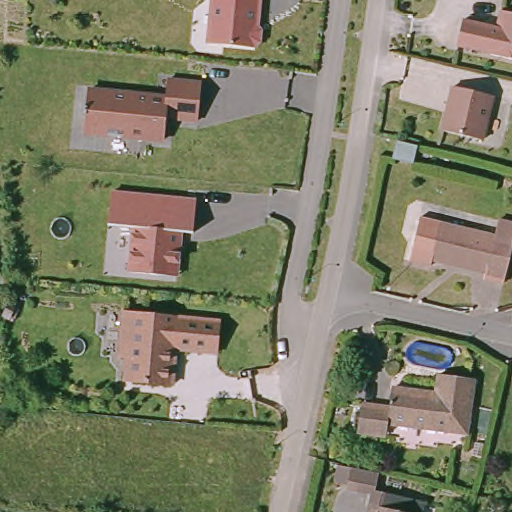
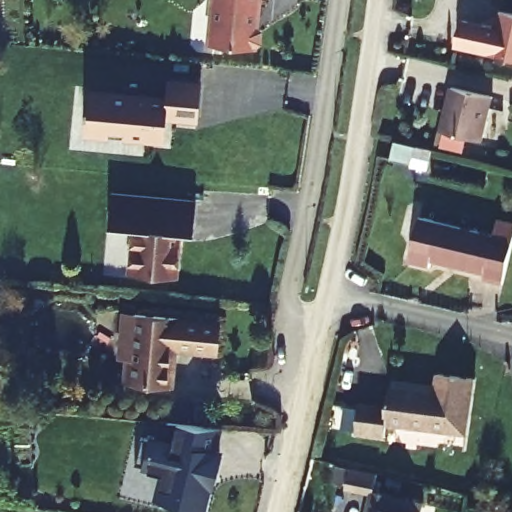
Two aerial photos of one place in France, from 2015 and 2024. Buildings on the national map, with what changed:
unchanged [(258,11),(257,10),(255,24),(257,24),(257,26),(260,31),(260,42),(255,46),(255,49),(208,44),(212,0),(259,0),(258,11)]
unchanged [(463,18),(500,26),(503,9),(512,11),(512,58),(490,53),(491,51),(457,44),(463,18)]
unchanged [(203,84),(200,121),(168,119),(166,141),(87,134),(91,93),(168,100),(170,81),(203,84)]
unchanged [(490,92),(480,136),(439,127),(443,109),(447,110),(449,100),(446,99),(450,83),(490,92)]
unchanged [(393,158),(397,140),(417,145),(413,162),(393,158)]
unchanged [(195,233),(180,231),(179,240),(182,240),(179,275),(162,273),(161,278),(131,275),(135,230),(110,228),(113,194),(198,202),(195,233)]
unchanged [(482,281),(485,273),(485,268),(432,255),(430,260),(411,255),(421,213),(494,230),(497,214),(512,217),(512,243),(505,271),(504,278),(502,285),(482,281)]
unchanged [(201,320),(198,351),(167,349),(167,344),(158,343),(155,384),(107,380),(108,356),(102,355),(105,311),(201,320)]
unchanged [(360,401),(389,404),(392,383),(437,388),(439,370),(475,374),(467,428),(387,418),(386,430),(357,427),(360,401)]
new [(206,486),(207,487),(201,510),(157,498),(165,471),(135,462),(142,436),(167,442),(172,422),(220,428),(213,451),(220,453),(215,475),(212,488),(206,486)]
unchanged [(420,512),(368,512),(373,492),(422,505),(420,512)]

